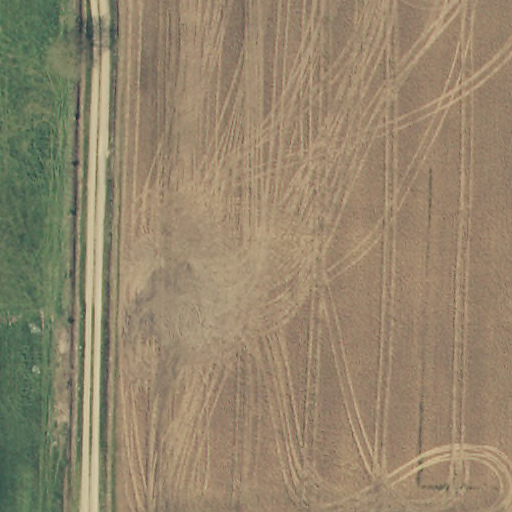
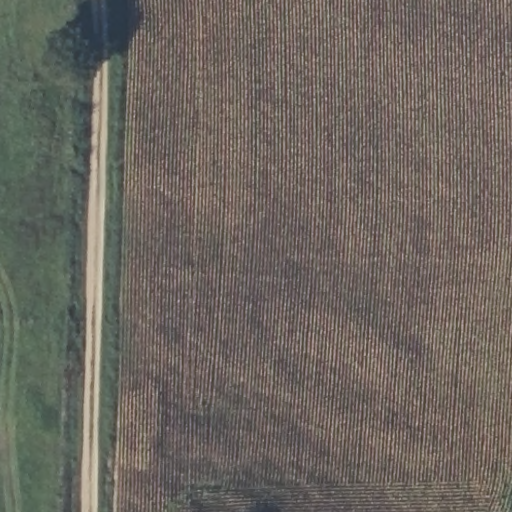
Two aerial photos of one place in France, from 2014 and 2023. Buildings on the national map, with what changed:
[]

